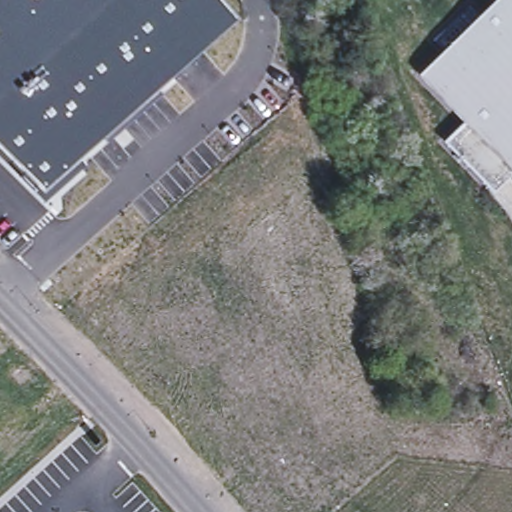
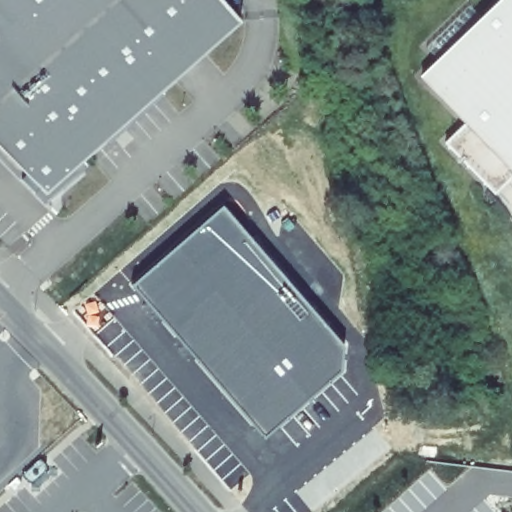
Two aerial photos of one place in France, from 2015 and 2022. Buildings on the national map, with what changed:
unchanged [(161,91),(165,94),(107,145),(104,140),(82,161),(89,168),(47,206),(34,192),(40,185),(27,172),(20,178),(0,158),(0,0),(225,0),(242,19),(161,91)]
unchanged [(494,194),(445,143),(466,124),(420,75),(496,0),(512,0),(512,177),(494,194)]
new [(225,207),(344,349),(345,373),(266,437),(132,286),(225,207)]

